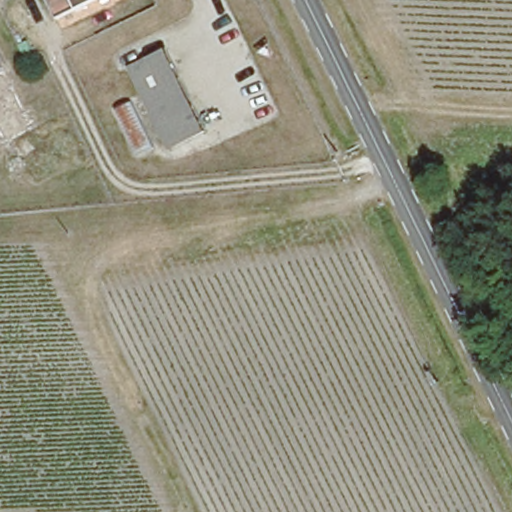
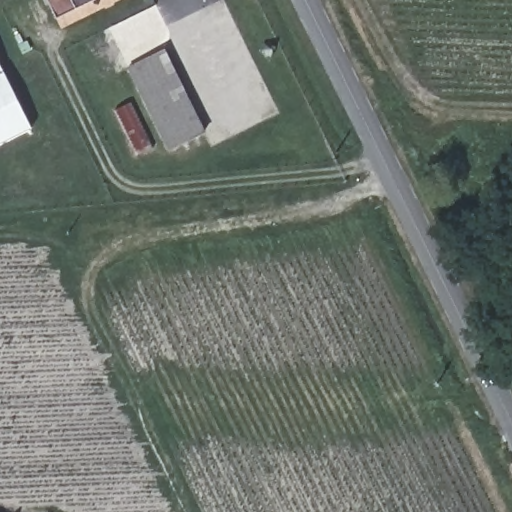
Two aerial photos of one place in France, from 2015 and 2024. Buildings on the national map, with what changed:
unchanged [(50,0),(84,0),(57,14),(50,0)]
unchanged [(170,148),(130,67),(166,49),(206,131),(170,148)]
unchanged [(0,66),(0,61),(2,65),(0,66)]
new [(33,127),(0,143),(0,66),(2,65),(33,127)]
unchanged [(138,156),(116,110),(133,102),(155,147),(138,156)]

